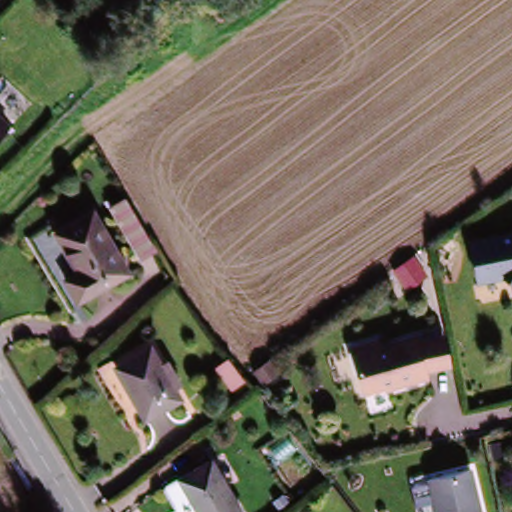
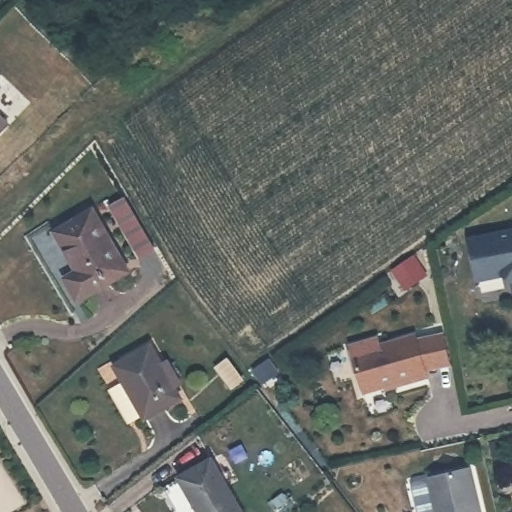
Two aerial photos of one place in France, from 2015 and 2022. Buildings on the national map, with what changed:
unchanged [(10,132),(0,143),(0,123),(10,132)]
unchanged [(163,252),(147,262),(119,212),(135,203),(163,252)]
unchanged [(96,217),(128,277),(75,307),(61,283),(75,277),(56,238),(96,217)]
unchanged [(508,280),(498,274),(473,278),(465,239),(512,230),(512,291),(511,292),(508,280)]
unchanged [(385,392),(384,388),(355,396),(343,350),(372,342),(374,349),(410,340),(412,343),(438,337),(445,367),(418,373),(421,382),(385,392)]
unchanged [(156,351),(185,400),(149,421),(120,372),(156,351)]
unchanged [(257,374),(249,363),(264,353),(272,365),(257,374)]
unchanged [(235,391),(220,370),(234,361),(249,381),(235,391)]
unchanged [(505,447),(491,450),(488,440),(503,436),(505,447)]
unchanged [(238,512),(196,512),(178,485),(207,466),(238,512)]
unchanged [(426,482),(467,472),(476,512),(433,512),(426,482)]

